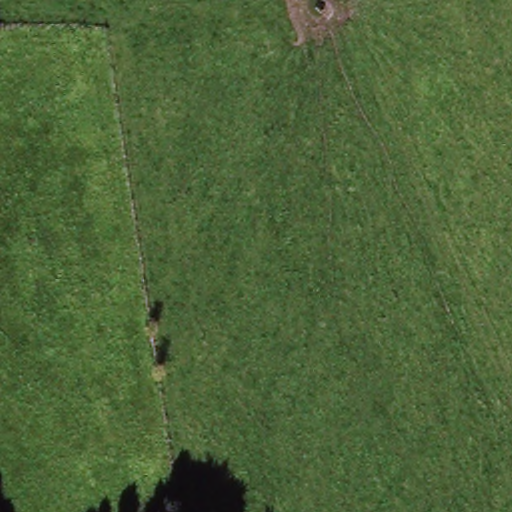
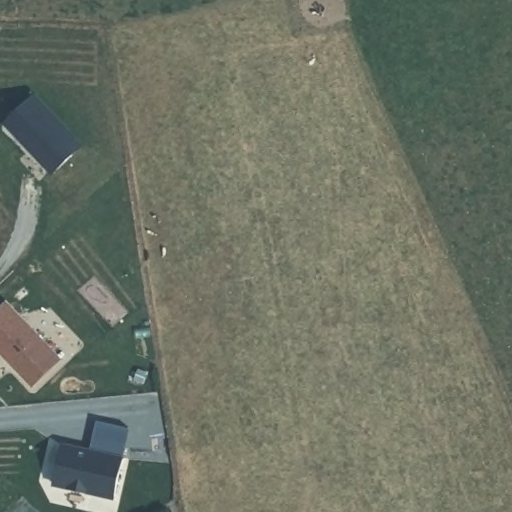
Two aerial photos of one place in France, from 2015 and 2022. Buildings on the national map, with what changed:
new [(6,121),(36,95),(81,146),(51,173),(35,154),(28,146),(6,121)]
new [(8,303),(60,362),(31,388),(0,353),(0,309),(8,303)]
new [(130,429),(114,501),(51,486),(62,443),(90,449),(97,421),(130,429)]

